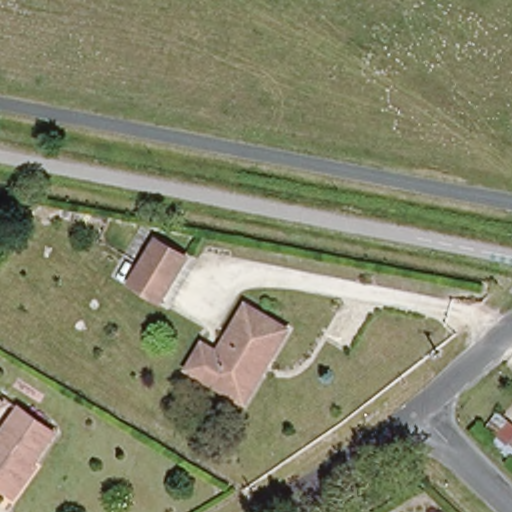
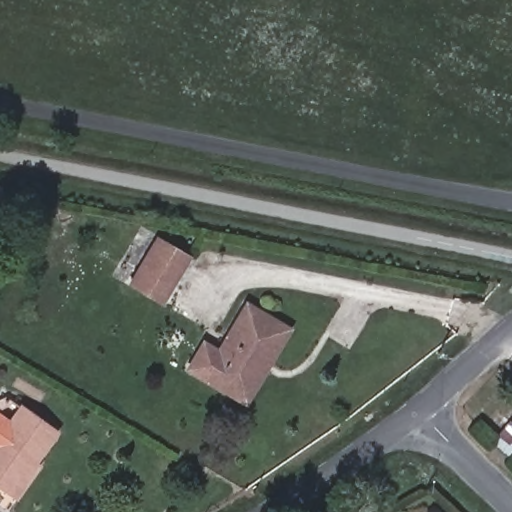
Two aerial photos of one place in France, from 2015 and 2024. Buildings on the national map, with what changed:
unchanged [(157,239),(188,255),(163,296),(132,280),(157,239)]
unchanged [(222,348),(249,301),(295,327),(275,361),(270,359),(247,397),(206,373),(197,367),(212,342),(222,348)]
unchanged [(16,492),(0,480),(0,434),(22,403),(61,429),(16,492)]

